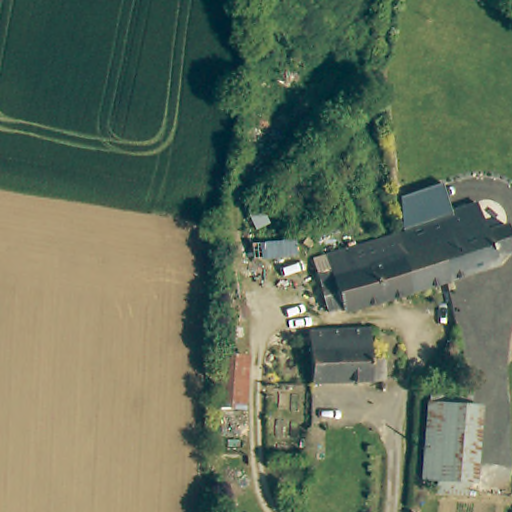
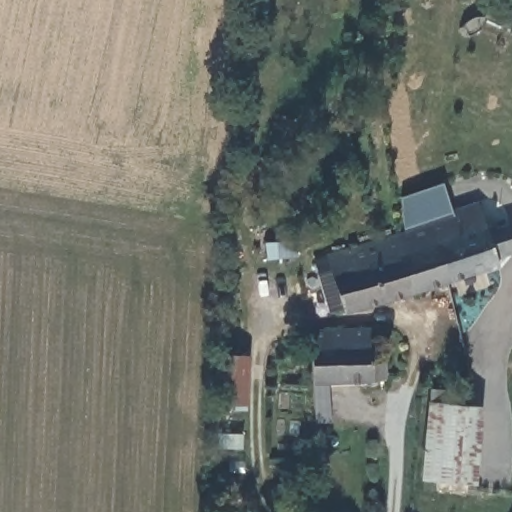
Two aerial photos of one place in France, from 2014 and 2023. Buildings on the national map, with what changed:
unchanged [(469,202),(478,229),(498,222),(506,249),(496,252),(489,261),(490,262),(447,276),(436,241),(404,251),(402,252),(394,226),(396,226),(469,202)]
unchanged [(447,276),(378,297),(344,308),(327,252),(349,245),(391,233),(397,253),(402,252),(404,251),(436,241),(447,276)]
unchanged [(367,330),(369,359),(384,358),(386,381),(311,382),(308,335),(308,332),(367,330)]
unchanged [(441,495),(441,483),(422,483),(424,406),(473,406),(471,483),(471,495),(441,495)]

